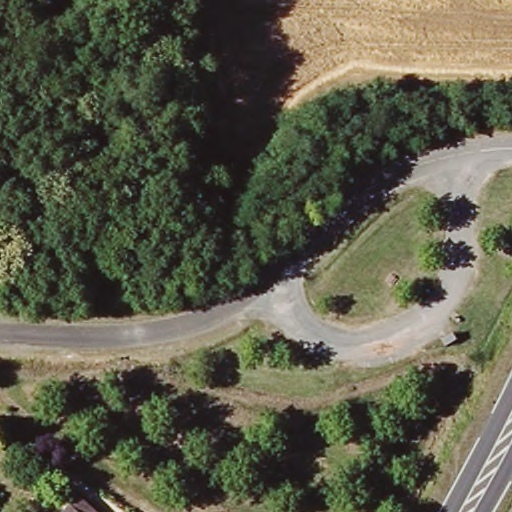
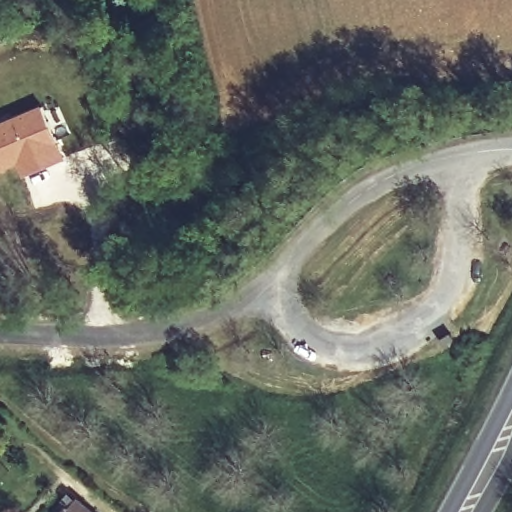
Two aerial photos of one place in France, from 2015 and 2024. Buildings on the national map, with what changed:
new [(65,158),(23,174),(19,165),(0,171),(0,121),(42,103),(65,158)]
unchanged [(80,499),(95,512),(68,512),(80,499)]

